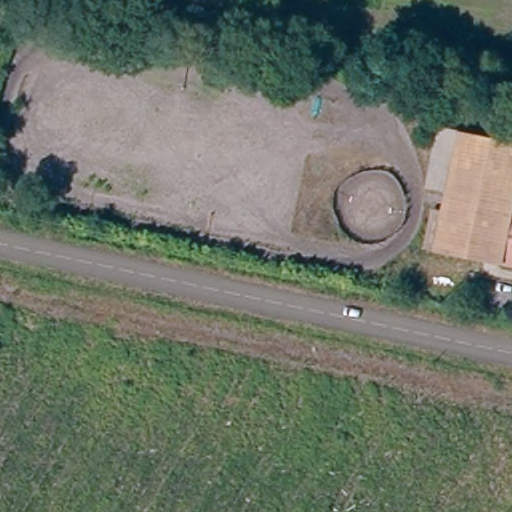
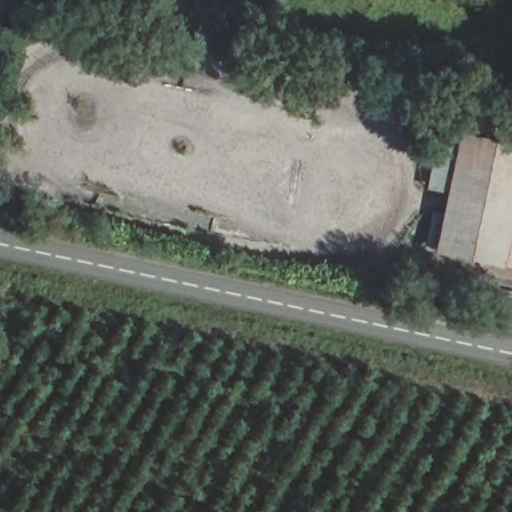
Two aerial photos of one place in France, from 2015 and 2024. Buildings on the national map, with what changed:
unchanged [(432,252),(452,132),(512,143),(512,182),(502,260),(501,265),(432,252)]
unchanged [(511,212),(512,213),(512,262),(502,260),(511,212)]

